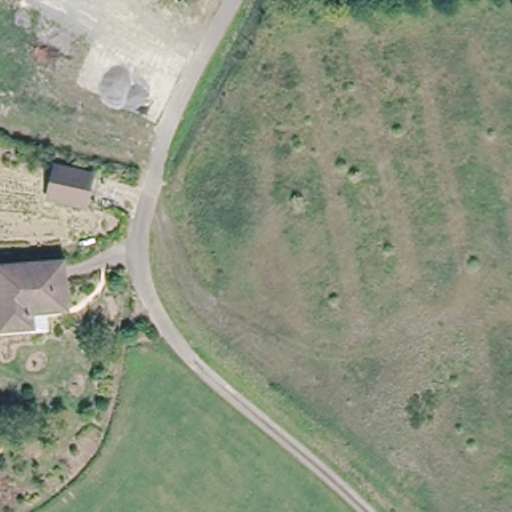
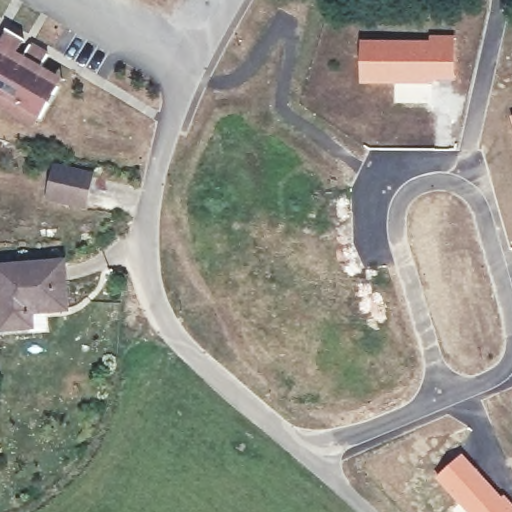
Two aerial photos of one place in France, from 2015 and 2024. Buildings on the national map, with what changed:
new [(0,108),(0,40),(5,30),(23,40),(17,52),(23,55),(30,43),(50,55),(43,67),(64,79),(34,128),(0,108)]
new [(360,40),(428,40),(429,34),(455,35),(454,80),(432,81),(430,101),(395,101),(395,84),(360,82),(360,40)]
new [(512,121),(510,116),(512,115),(512,121)]
unchanged [(96,177),(89,206),(47,195),(53,167),(96,177)]
unchanged [(51,262),(56,308),(23,312),(26,328),(0,332),(0,268),(51,262)]

